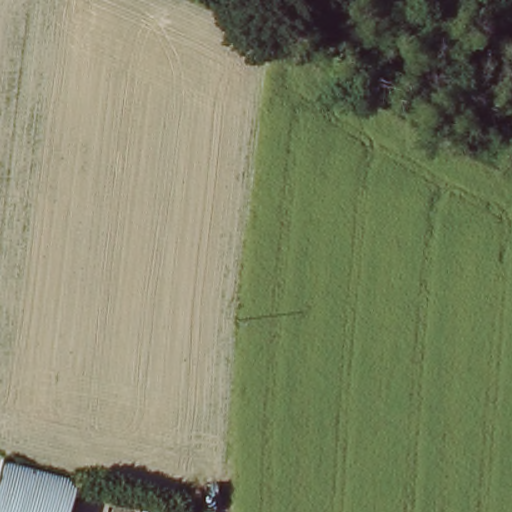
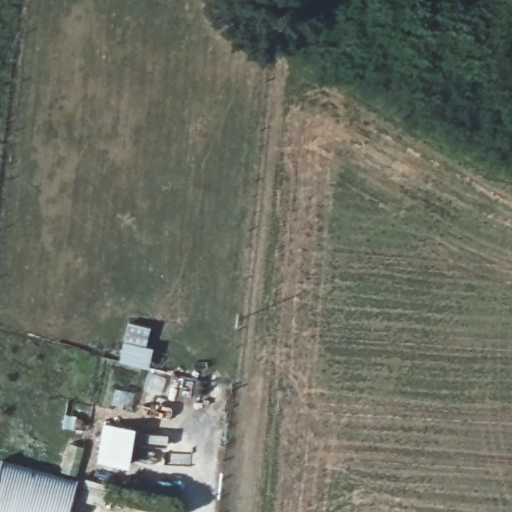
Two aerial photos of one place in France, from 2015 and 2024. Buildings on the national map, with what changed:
new [(128,467),(97,463),(103,424),(135,429),(128,467)]
unchanged [(63,484),(56,512),(18,512),(0,507),(0,480),(3,469),(54,482),(63,484)]

